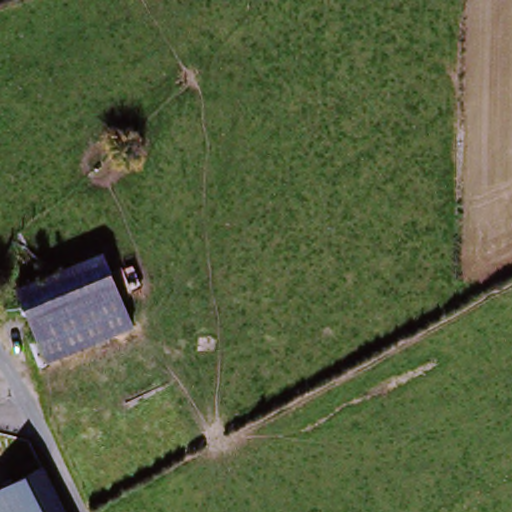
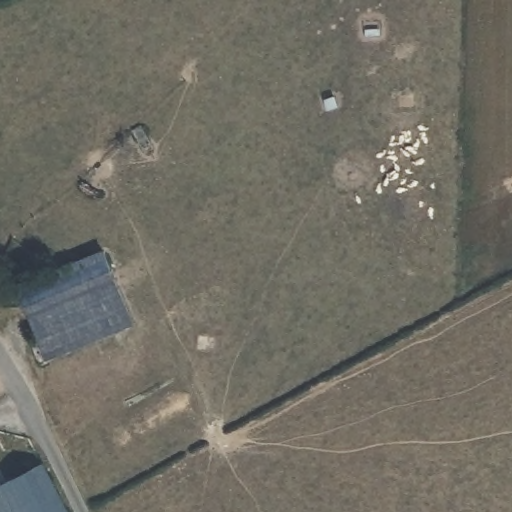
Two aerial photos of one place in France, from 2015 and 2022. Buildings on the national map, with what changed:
unchanged [(14,285),(55,270),(103,252),(130,330),(43,362),(14,285)]
unchanged [(62,512),(32,512),(16,482),(38,467),(62,512)]
unchanged [(0,490),(16,482),(32,512),(0,512),(0,490)]

